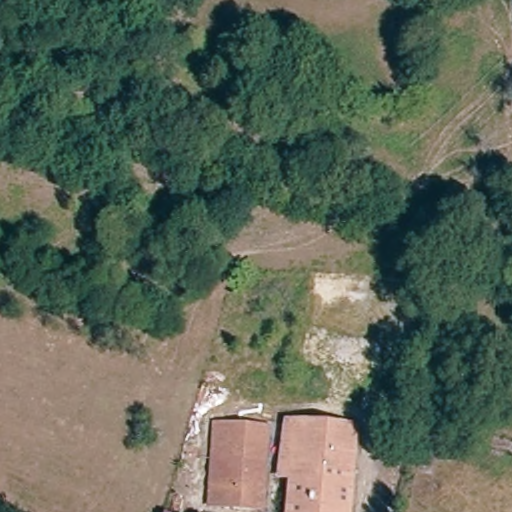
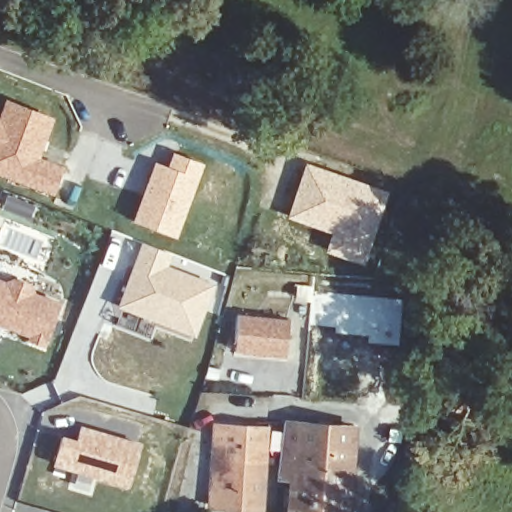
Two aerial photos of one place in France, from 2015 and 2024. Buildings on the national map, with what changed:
new [(56,116),(39,155),(61,165),(50,195),(0,176),(0,110),(5,99),(56,116)]
new [(154,161),(166,166),(172,151),(204,164),(175,238),(131,221),(154,161)]
new [(304,162),(389,192),(362,265),(322,251),(328,233),(285,217),(304,162)]
new [(8,194),(36,205),(30,221),(1,209),(8,194)]
new [(170,253),(165,267),(211,287),(193,333),(121,304),(145,244),(170,253)]
demolished [(312,273),(372,276),(367,331),(307,325),(312,273)]
new [(60,297),(41,345),(0,328),(0,275),(30,283),(60,297)]
new [(295,283),(312,285),(312,292),(398,298),(395,345),(367,342),(368,337),(335,332),(335,329),(308,325),(310,303),(294,302),(295,283)]
new [(289,318),(286,355),(235,352),(239,313),(289,318)]
unchanged [(352,512),(290,512),(292,465),(280,464),(281,434),(281,427),(358,432),(352,512)]
new [(77,444),(81,429),(139,445),(128,485),(55,464),(60,440),(77,444)]
unchanged [(212,432),(266,432),(266,438),(265,512),(211,512),(212,432)]

